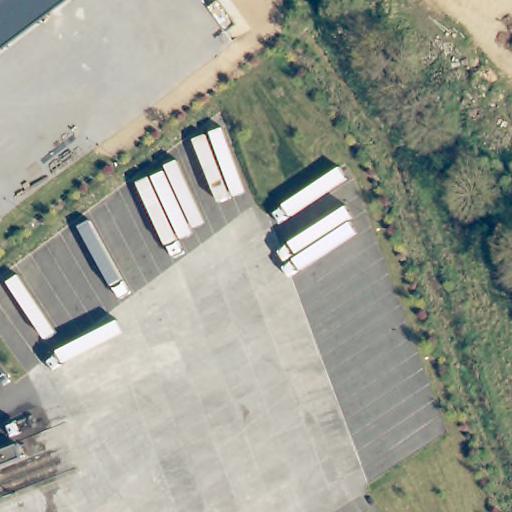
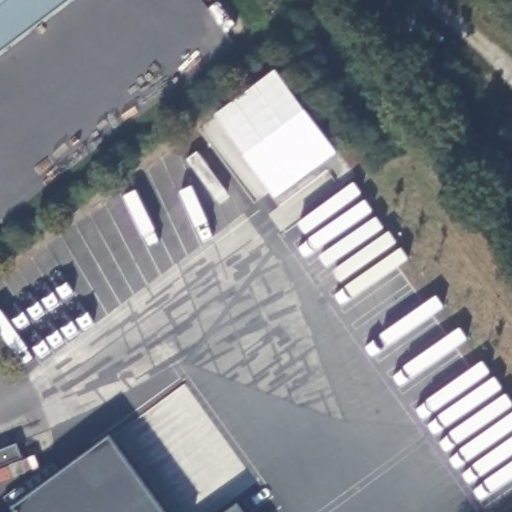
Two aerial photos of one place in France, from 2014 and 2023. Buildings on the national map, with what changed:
unchanged [(0,0),(73,0),(0,55),(0,0)]
new [(216,116),(277,71),(339,154),(278,199),(216,116)]
new [(15,511),(111,439),(162,512),(16,512),(15,511)]
unchanged [(21,460),(0,467),(0,451),(15,445),(21,460)]
new [(241,505),(245,512),(229,512),(241,505)]

